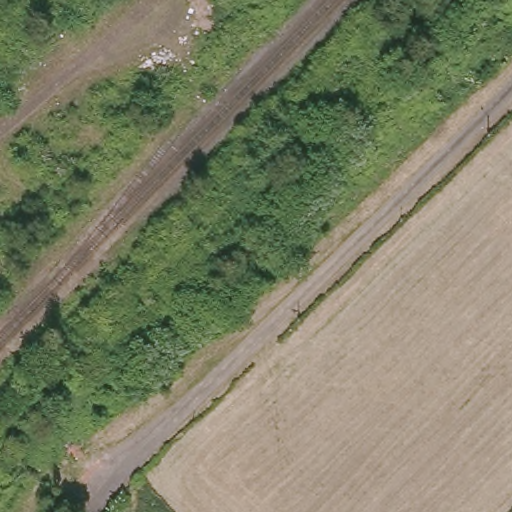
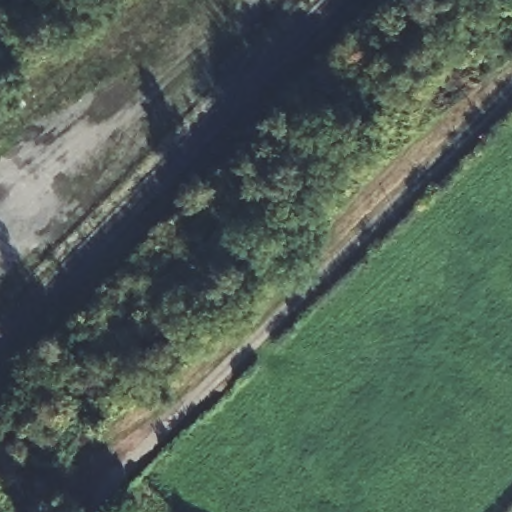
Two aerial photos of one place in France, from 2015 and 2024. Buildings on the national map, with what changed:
[]

